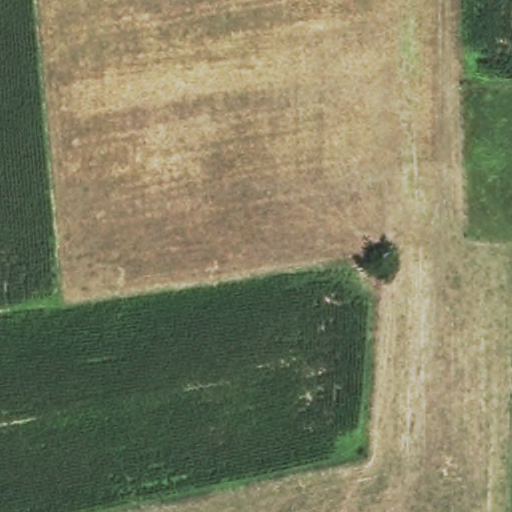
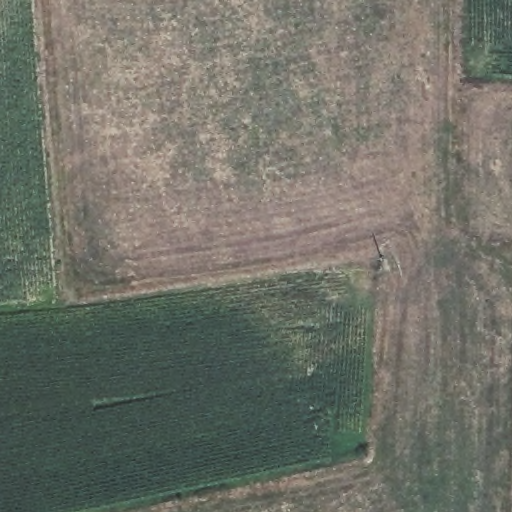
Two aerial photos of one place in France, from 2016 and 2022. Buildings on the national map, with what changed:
[]

